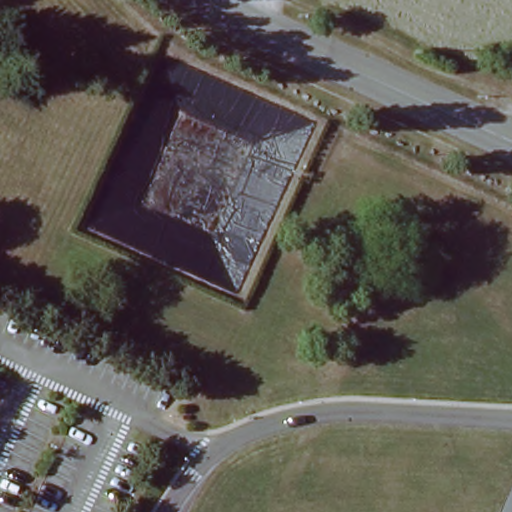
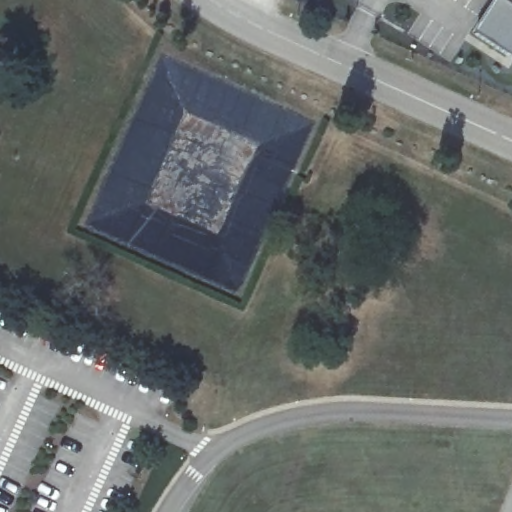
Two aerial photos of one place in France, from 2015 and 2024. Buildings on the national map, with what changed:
new [(497,0),(512,0),(512,57),(477,34),(497,0)]

